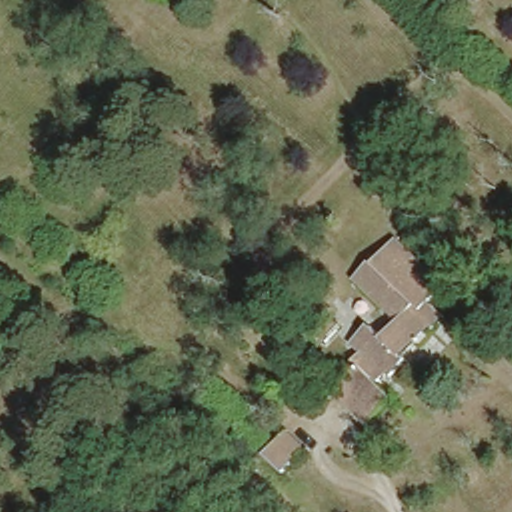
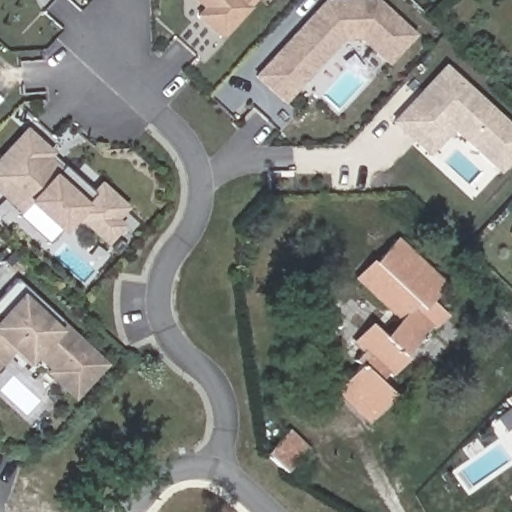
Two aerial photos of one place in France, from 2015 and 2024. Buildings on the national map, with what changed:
new [(251,8),(222,39),(195,14),(202,8),(194,0),(242,0),(251,8)]
new [(416,35),(387,67),(358,39),(342,40),(283,105),(253,76),(322,0),(379,0),(416,35)]
new [(512,128),(512,156),(499,170),(442,117),(418,142),(394,121),(445,66),(512,128)]
new [(429,153),(418,142),(442,117),(452,127),(429,153)]
new [(118,226),(104,241),(75,214),(59,232),(29,205),(21,213),(0,192),(0,159),(6,152),(28,173),(44,157),(57,170),(62,165),(92,193),(100,185),(122,207),(111,219),(118,226)]
unchanged [(352,358),(365,345),(355,335),(369,320),(382,332),(399,314),(356,274),(397,235),(447,283),(432,298),(447,314),(436,325),(430,321),(403,347),(408,353),(391,370),(387,365),(377,374),(393,391),(367,418),(334,387),(357,363),(352,358)]
new [(72,400),(42,372),(46,369),(34,357),(27,367),(12,353),(0,364),(0,295),(16,278),(107,365),(72,400)]
new [(506,398),(512,392),(512,406),(506,398)]
unchanged [(304,447),(282,468),(262,450),(285,427),(304,447)]

